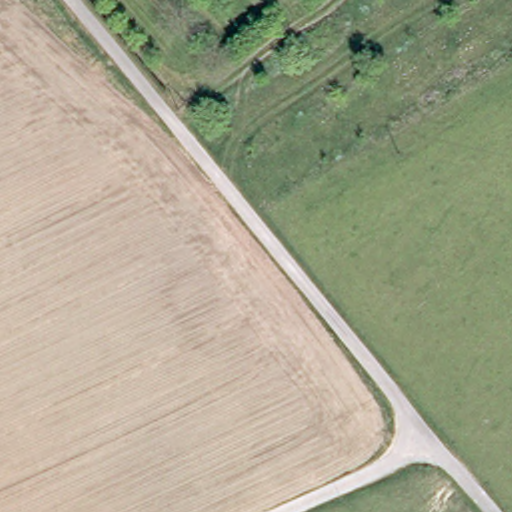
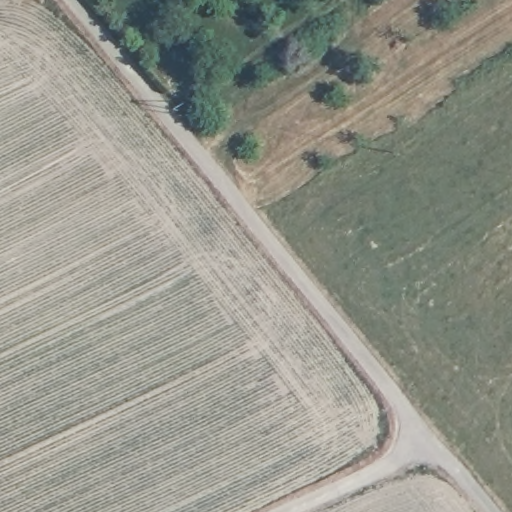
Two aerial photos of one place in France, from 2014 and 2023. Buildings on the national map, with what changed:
[]

